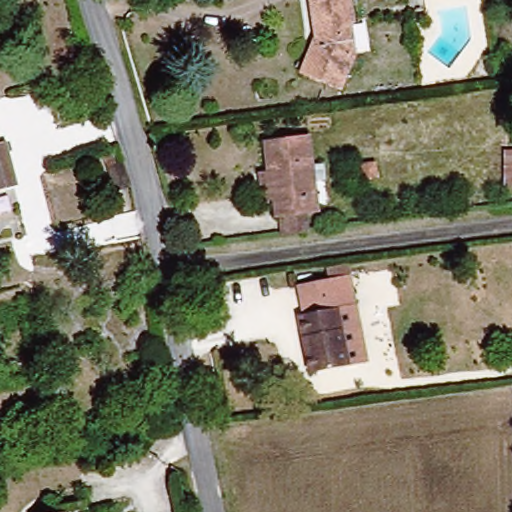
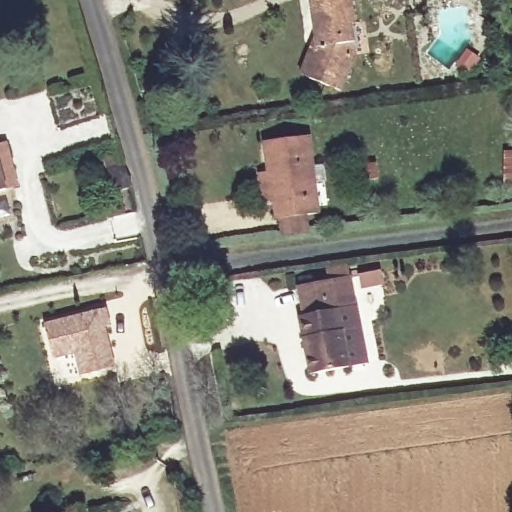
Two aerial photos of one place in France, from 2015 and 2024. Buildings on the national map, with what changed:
unchanged [(344,90),(312,78),(317,67),(322,55),(313,0),(354,0),(357,25),(354,25),(359,54),(344,90)]
unchanged [(282,218),(280,219),(277,200),(267,200),(264,174),(272,173),(267,141),(312,135),(322,213),(310,215),(312,230),(285,234),(282,218)]
unchanged [(10,189),(0,192),(0,145),(9,142),(21,185),(10,189)]
unchanged [(115,191),(107,169),(122,162),(131,186),(115,191)]
unchanged [(349,367),(309,375),(298,316),(302,315),(297,285),(350,275),(357,306),(338,310),(349,365),(349,367)]
new [(107,305),(111,325),(105,327),(115,367),(82,377),(76,354),(52,360),(43,322),(107,305)]
unchanged [(367,362),(349,365),(338,310),(357,306),(367,362)]
unchanged [(74,512),(59,512),(73,509),(74,512)]

